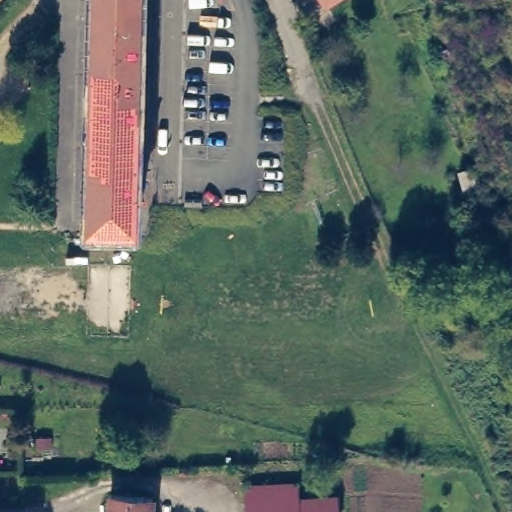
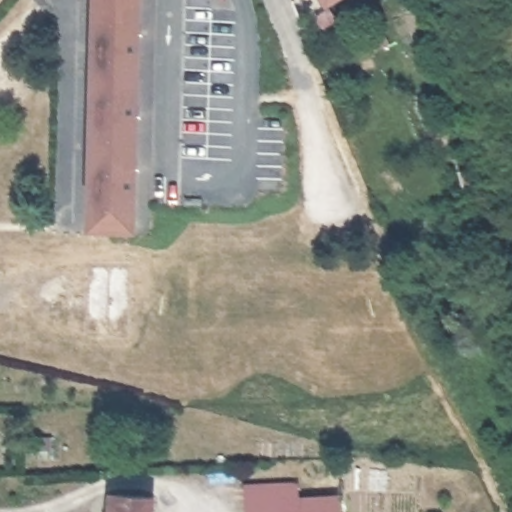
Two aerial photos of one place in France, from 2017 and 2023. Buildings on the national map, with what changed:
unchanged [(95,212),(102,0),(143,0),(136,213),(95,212)]
unchanged [(485,188),(464,194),(457,171),(477,164),(485,188)]
unchanged [(474,354),(450,366),(437,338),(458,328),(474,354)]
unchanged [(5,452),(5,434),(17,433),(17,451),(5,452)]
unchanged [(299,494),(300,512),(248,512),(247,496),(299,494)]
unchanged [(338,512),(300,512),(299,494),(337,494),(338,512)]
unchanged [(153,501),(153,512),(109,512),(110,497),(153,501)]

